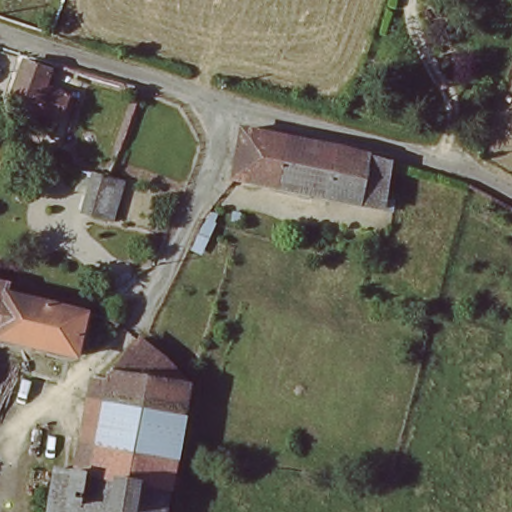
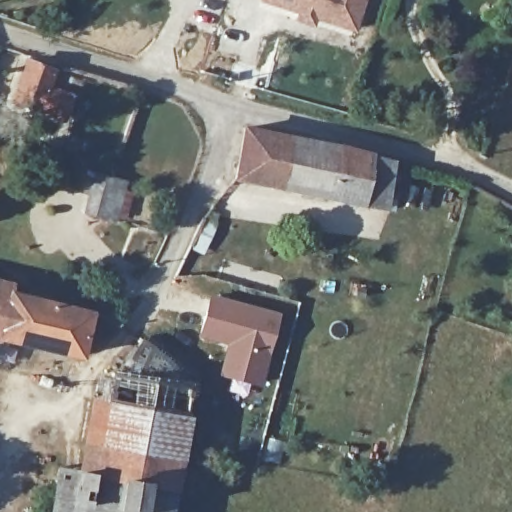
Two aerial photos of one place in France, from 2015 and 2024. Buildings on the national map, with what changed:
new [(317,18),(313,26),(294,19),(296,13),(259,0),(366,0),(356,32),(317,18)]
unchanged [(38,111),(11,102),(26,64),(51,71),(38,111)]
unchanged [(334,146),(339,147),(394,164),(389,199),(387,210),(235,182),(248,129),(334,146)]
unchanged [(120,184),(127,186),(116,220),(92,213),(89,212),(100,178),(115,182),(120,184)]
unchanged [(82,358),(0,338),(0,282),(14,286),(14,293),(25,296),(91,313),(82,358)]
new [(259,386),(218,376),(226,343),(199,337),(209,295),(280,313),(259,386)]
unchanged [(110,375),(115,376),(137,349),(140,343),(164,362),(182,386),(185,391),(182,412),(180,422),(177,442),(175,454),(173,467),(173,470),(173,471),(170,489),(168,489),(139,484),(138,484),(126,482),(91,476),(110,375)]
unchanged [(164,512),(47,512),(55,469),(64,471),(84,474),(91,476),(126,482),(138,484),(139,484),(168,489),(164,512)]

